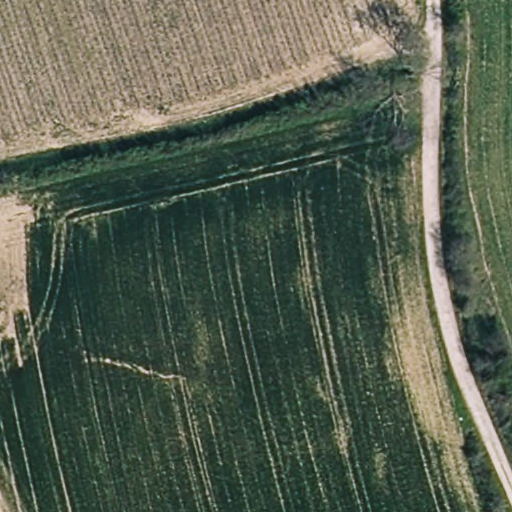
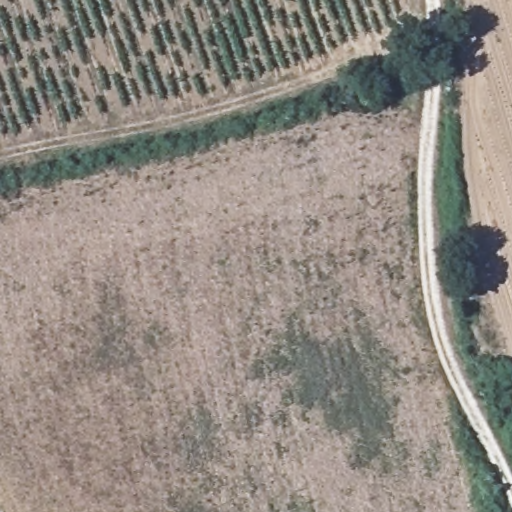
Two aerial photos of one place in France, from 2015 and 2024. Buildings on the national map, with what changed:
unchanged [(505,372),(485,379),(477,354),(497,349),(505,372)]

